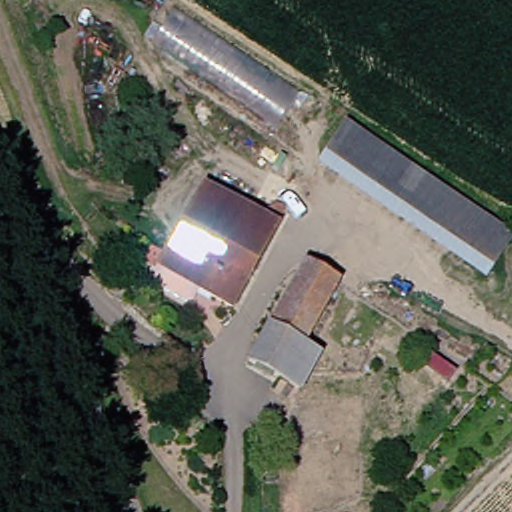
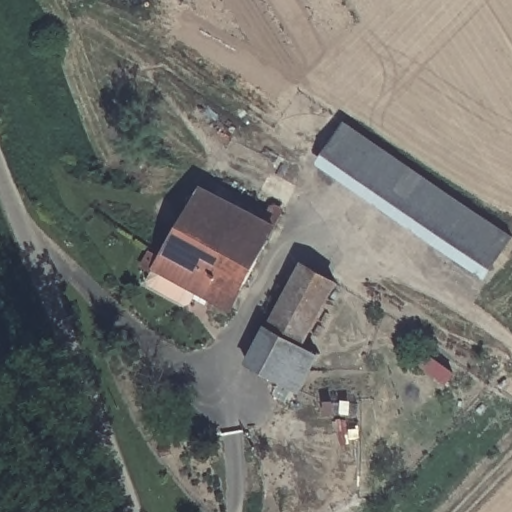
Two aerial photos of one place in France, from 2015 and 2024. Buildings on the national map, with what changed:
demolished [(301,90),(280,126),(150,44),(173,9),(301,90)]
unchanged [(334,129),(500,239),(478,271),(312,161),(334,129)]
unchanged [(206,298),(148,264),(195,184),(259,222),(267,208),(277,213),(233,287),(222,307),(206,298)]
unchanged [(240,362),(260,324),(294,264),(330,281),(297,345),(309,352),(289,388),(240,362)]

